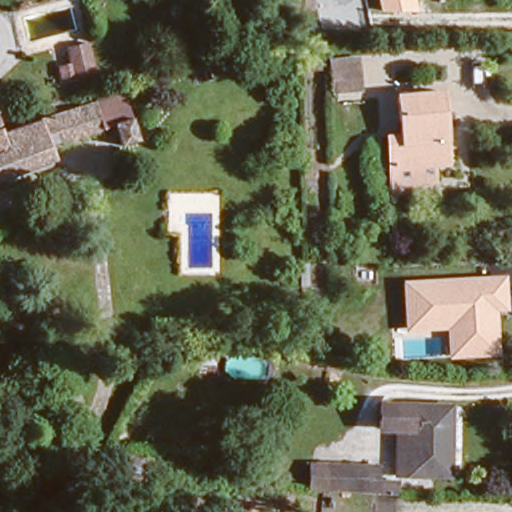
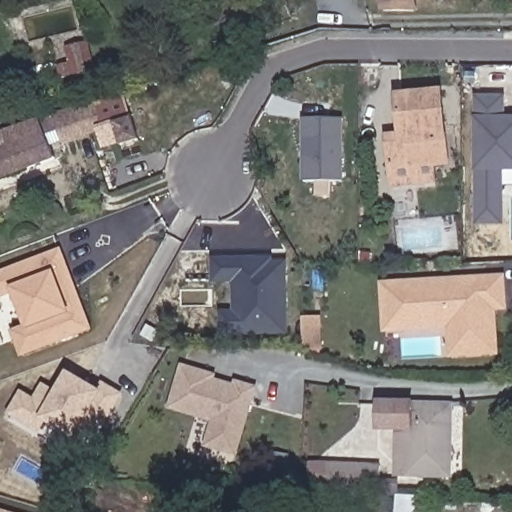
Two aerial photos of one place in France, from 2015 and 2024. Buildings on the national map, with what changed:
unchanged [(381,11),(378,0),(416,0),(418,11),(381,11)]
unchanged [(360,57),(358,80),(359,89),(331,89),(332,58),(360,57)]
unchanged [(18,100),(0,105),(0,80),(11,76),(18,100)]
unchanged [(450,150),(432,152),(434,170),(390,174),(384,126),(397,124),(393,86),(442,80),(450,150)]
unchanged [(109,87),(125,140),(98,147),(91,127),(83,95),(109,87)]
unchanged [(83,95),(91,127),(56,139),(46,106),(66,100),(83,95)]
new [(473,172),(474,172),(474,118),(476,96),(505,97),(504,118),(512,118),(512,172),(501,172),(504,225),(475,225),(473,172)]
unchanged [(41,144),(45,163),(0,174),(0,121),(4,120),(46,106),(56,139),(41,144)]
unchanged [(0,121),(0,107),(4,120),(0,121)]
new [(344,181),(302,182),(302,119),(343,118),(344,181)]
new [(13,295),(0,300),(0,273),(58,250),(93,331),(20,358),(11,332),(24,325),(13,295)]
new [(233,310),(233,284),(211,284),(211,259),(270,258),(271,262),(286,262),(287,336),(219,339),(219,312),(233,310)]
unchanged [(498,312),(501,355),(449,358),(447,329),(405,331),(403,280),(507,274),(509,310),(498,312)]
new [(383,333),(380,281),(403,280),(405,331),(383,333)]
new [(323,350),(302,350),(302,316),(323,316),(323,350)]
new [(237,458),(205,447),(209,423),(167,409),(182,364),(259,386),(237,458)]
new [(21,390),(35,397),(43,383),(56,394),(70,372),(96,386),(100,383),(122,396),(81,463),(66,454),(73,440),(44,422),(37,435),(8,412),(21,390)]
unchanged [(393,469),(394,452),(395,402),(451,405),(449,454),(448,469),(393,469)]
unchanged [(325,472),(399,475),(399,498),(324,494),(325,472)]

